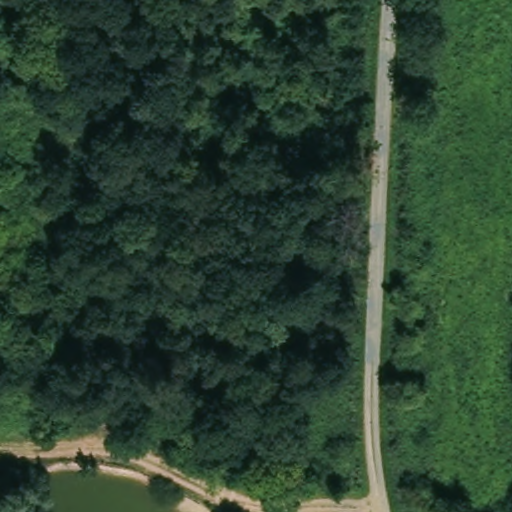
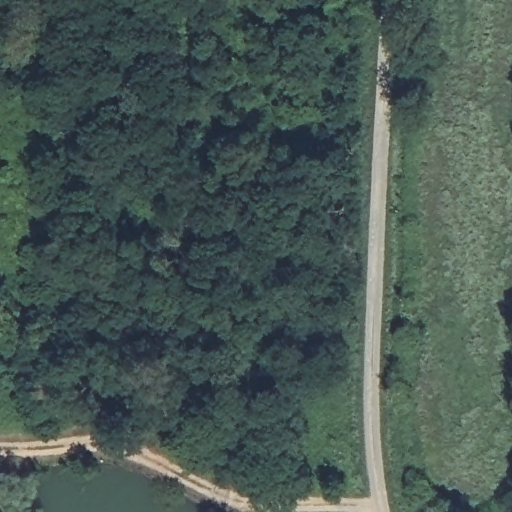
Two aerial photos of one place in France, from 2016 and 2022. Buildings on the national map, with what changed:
unchanged [(121,431),(118,447),(77,438),(80,423),(121,431)]

